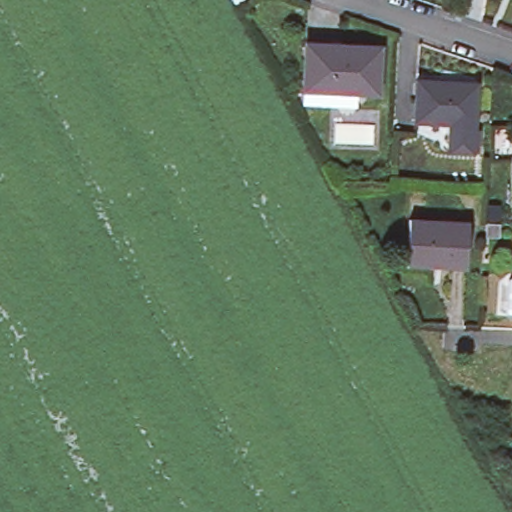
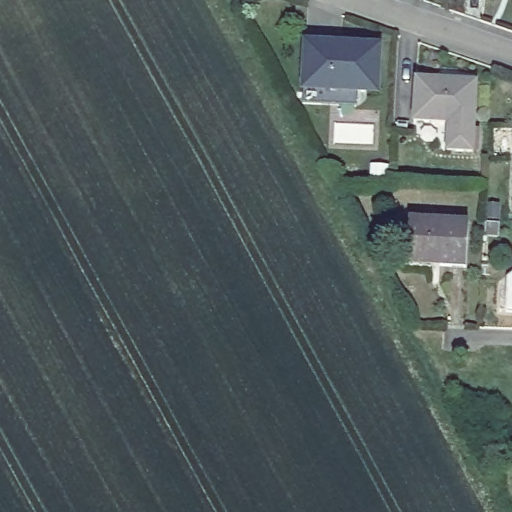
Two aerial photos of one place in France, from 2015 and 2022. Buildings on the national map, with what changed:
unchanged [(310,90),(311,76),(314,34),(337,35),(337,30),(387,33),(385,80),(362,78),(360,93),(310,90)]
unchanged [(450,145),(451,117),(416,116),(418,72),(479,76),(476,119),(475,146),(450,145)]
unchanged [(474,265),(414,262),(416,216),(475,219),(474,265)]

